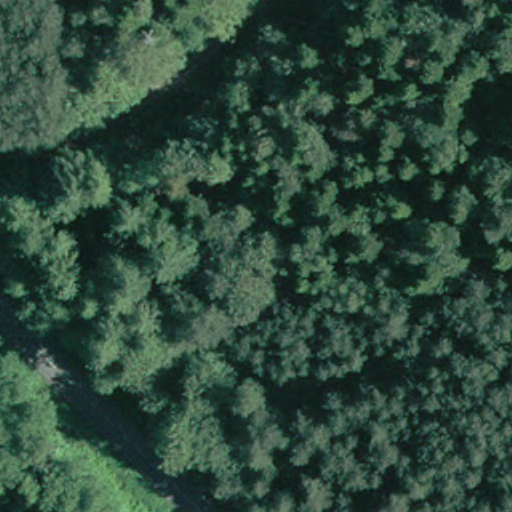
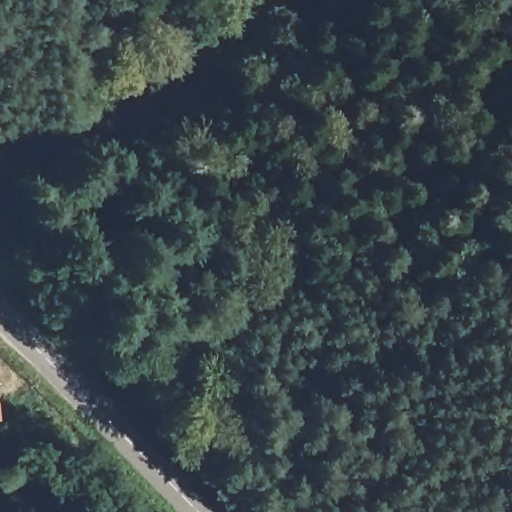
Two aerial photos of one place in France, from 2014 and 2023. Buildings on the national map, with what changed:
[]

